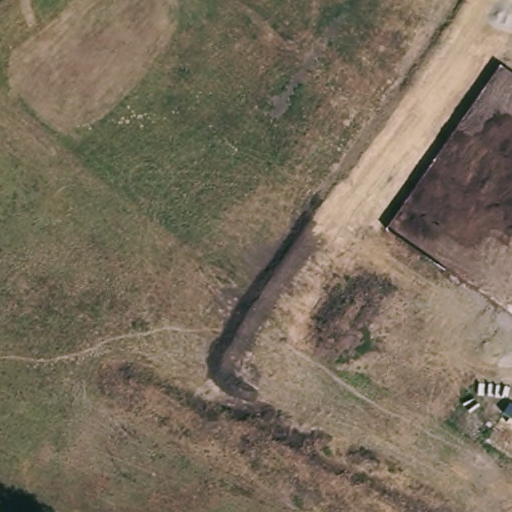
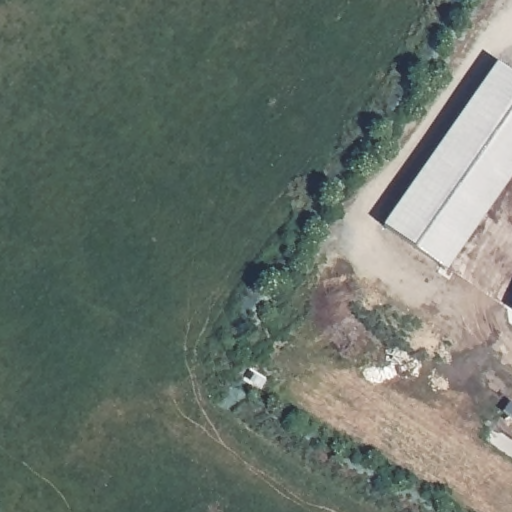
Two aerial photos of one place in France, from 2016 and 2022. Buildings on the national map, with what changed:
new [(512,73),(512,176),(447,270),(383,226),(497,62),(512,73)]

